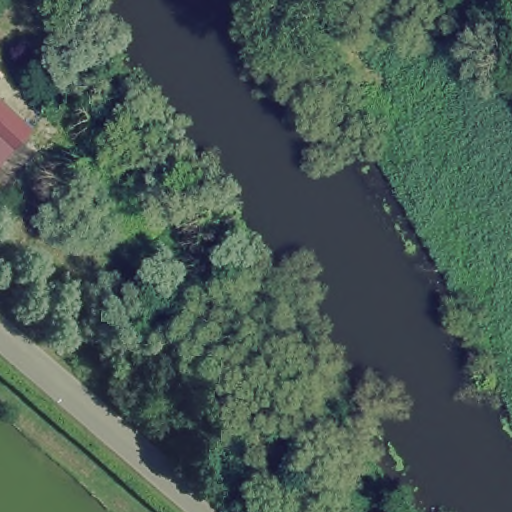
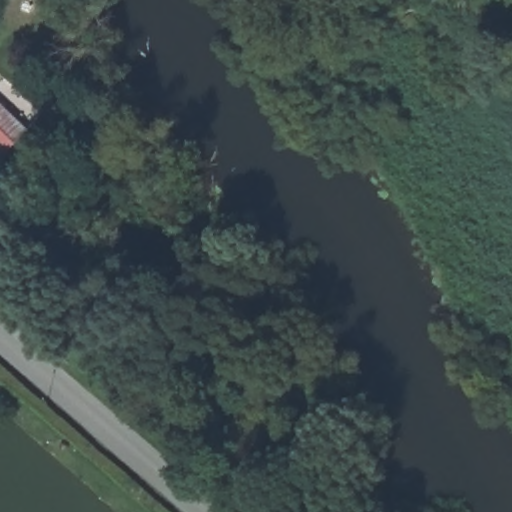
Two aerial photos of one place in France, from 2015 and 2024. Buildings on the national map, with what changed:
unchanged [(0,158),(0,105),(24,131),(0,158)]

